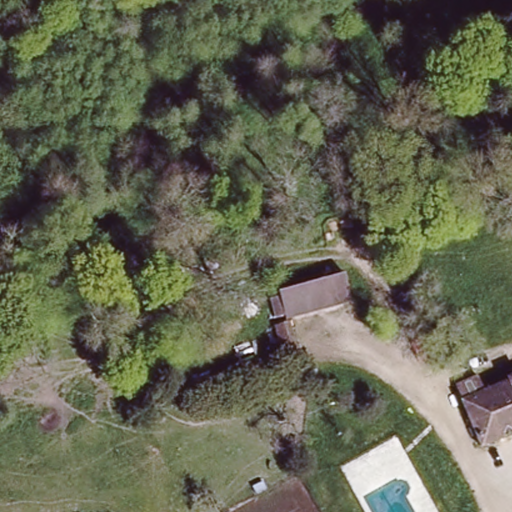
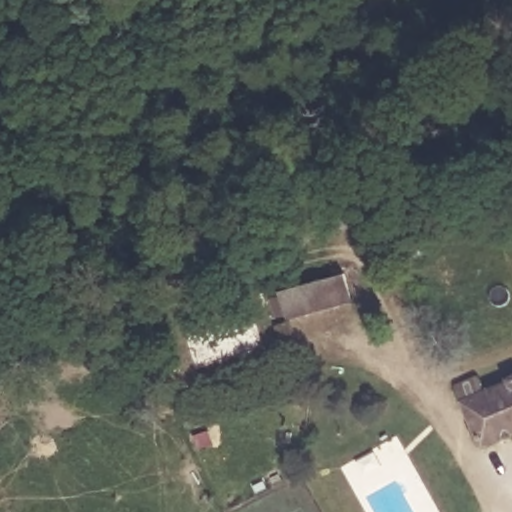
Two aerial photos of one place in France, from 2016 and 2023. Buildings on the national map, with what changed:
unchanged [(348,272),(355,298),(278,321),(270,292),(348,272)]
unchanged [(301,361),(281,364),(272,327),(291,321),(301,361)]
unchanged [(462,401),(455,387),(478,377),(485,390),(512,378),(512,439),(483,450),(462,401)]

